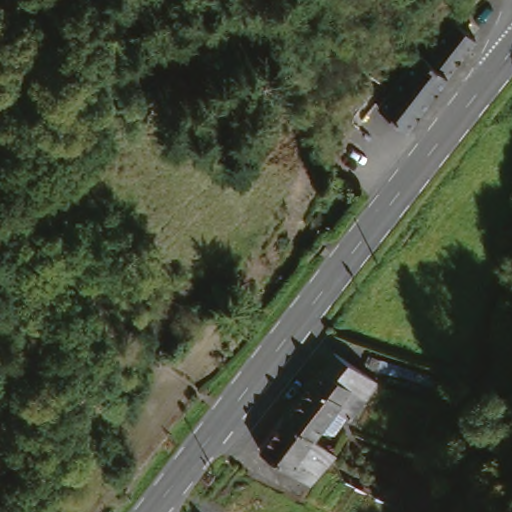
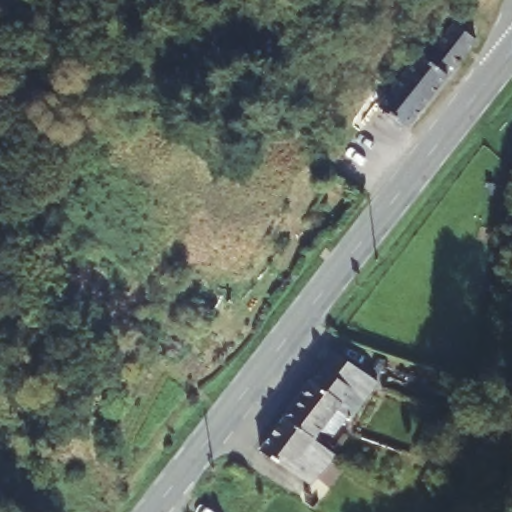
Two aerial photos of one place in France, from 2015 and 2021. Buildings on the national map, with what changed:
unchanged [(367,122),(427,47),(421,42),(431,29),(444,39),(462,17),(483,35),(412,122),(410,121),(392,142),(367,122)]
unchanged [(346,418),(333,408),(320,425),(308,439),(281,416),(319,365),(320,365),(325,357),(330,351),(372,384),(371,386),(346,418)]
unchanged [(308,439),(331,457),(309,488),(256,449),(281,416),(308,439)]

